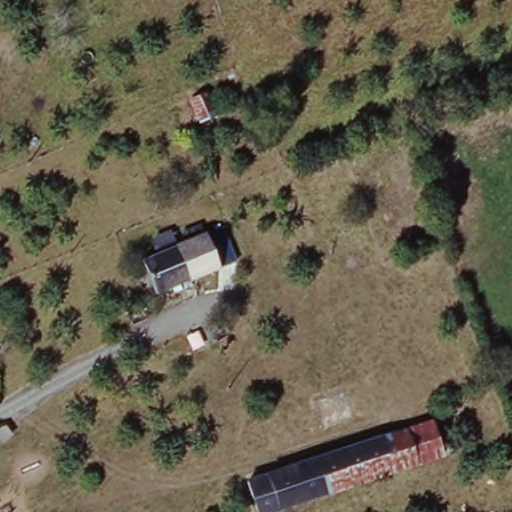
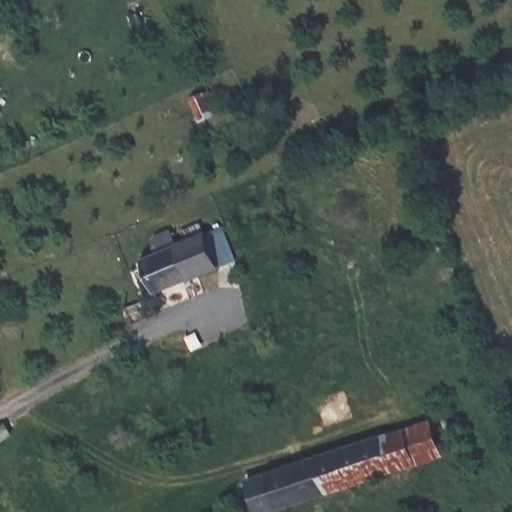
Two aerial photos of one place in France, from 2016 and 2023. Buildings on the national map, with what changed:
unchanged [(211,94),(219,120),(204,125),(196,100),(211,94)]
unchanged [(149,266),(168,258),(162,244),(177,237),(183,252),(208,242),(223,275),(197,285),(162,300),(149,266)]
unchanged [(383,443),(432,426),(443,460),(394,476),(383,443)]
unchanged [(3,429),(10,437),(1,445),(0,443),(0,431),(3,429)]
unchanged [(288,512),(258,512),(249,488),(383,443),(394,476),(288,512)]

